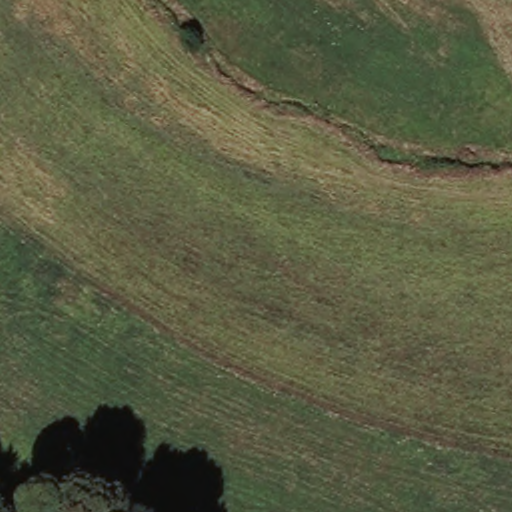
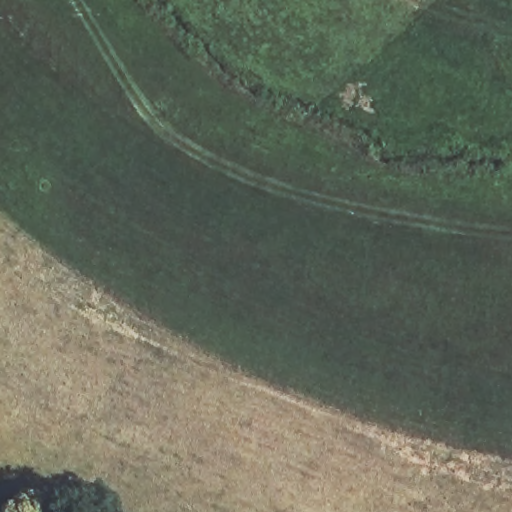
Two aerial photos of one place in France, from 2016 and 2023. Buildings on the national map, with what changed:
[]

